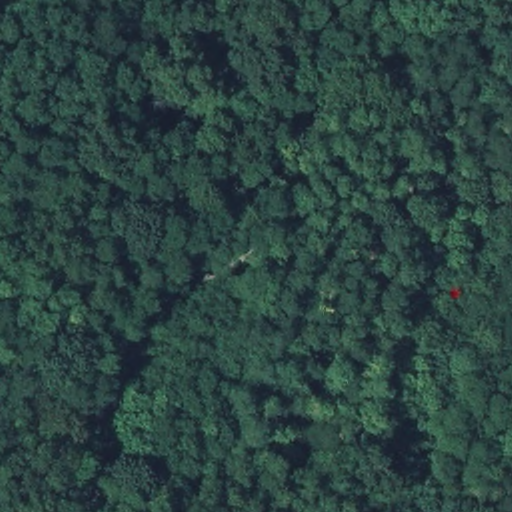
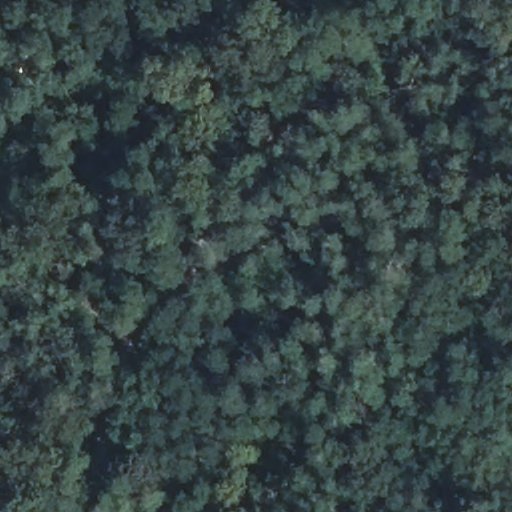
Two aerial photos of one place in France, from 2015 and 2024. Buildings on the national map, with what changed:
[]

